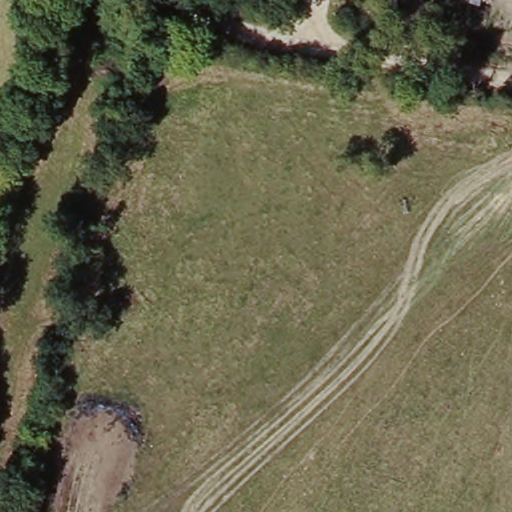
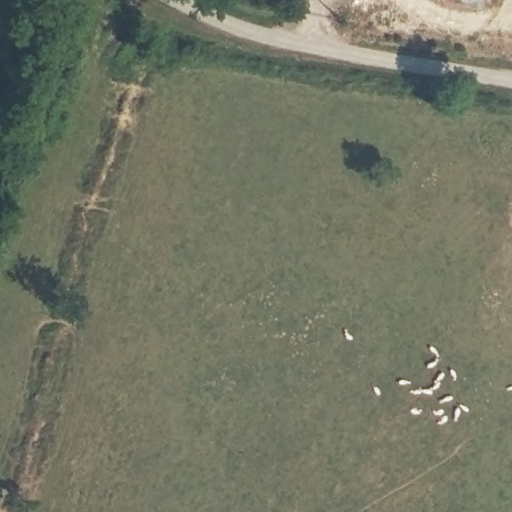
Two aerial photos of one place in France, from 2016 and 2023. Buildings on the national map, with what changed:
unchanged [(488,9),(432,0),(489,0),(488,9)]

